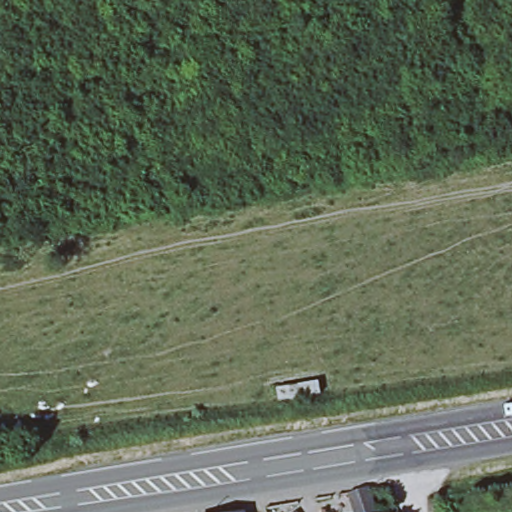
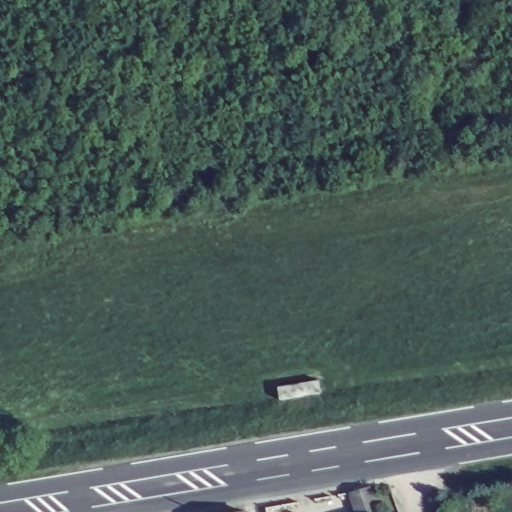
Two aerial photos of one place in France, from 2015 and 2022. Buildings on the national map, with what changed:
unchanged [(370,485),(378,512),(357,512),(352,489),(370,485)]
unchanged [(242,512),(230,512),(242,510),(242,512)]

